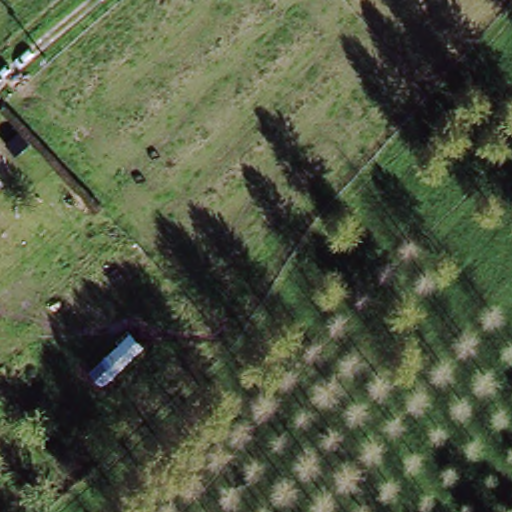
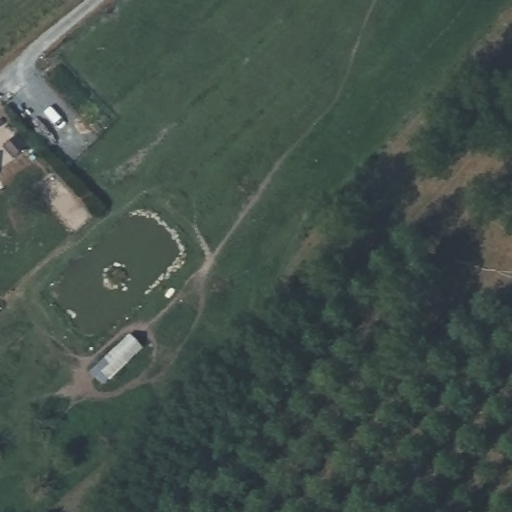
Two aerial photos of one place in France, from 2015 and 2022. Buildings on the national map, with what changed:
unchanged [(122,335),(136,348),(113,370),(99,357),(122,335)]

